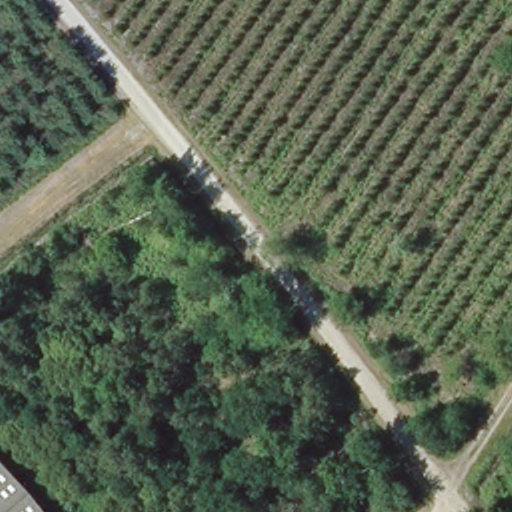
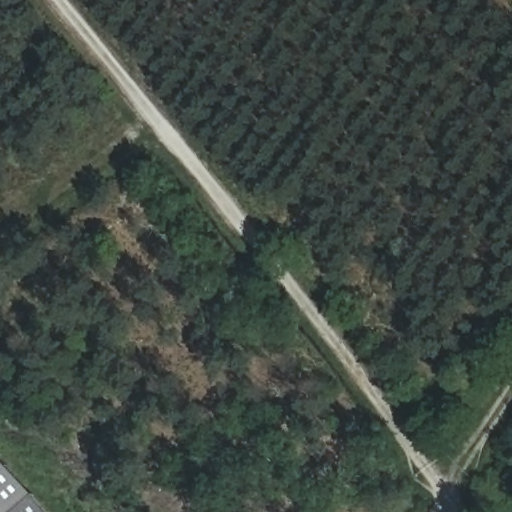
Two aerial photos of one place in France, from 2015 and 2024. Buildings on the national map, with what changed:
unchanged [(0,512),(0,459),(46,512),(0,512)]

